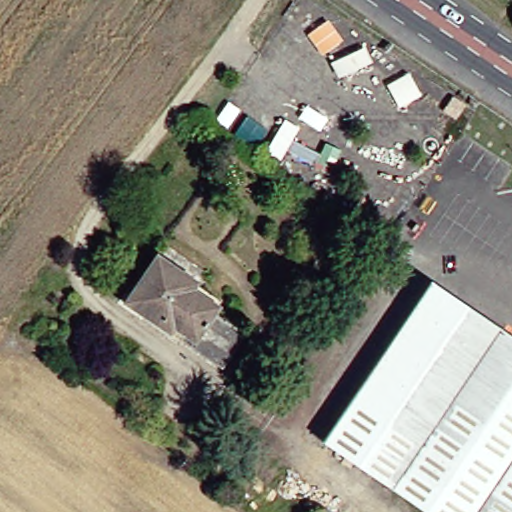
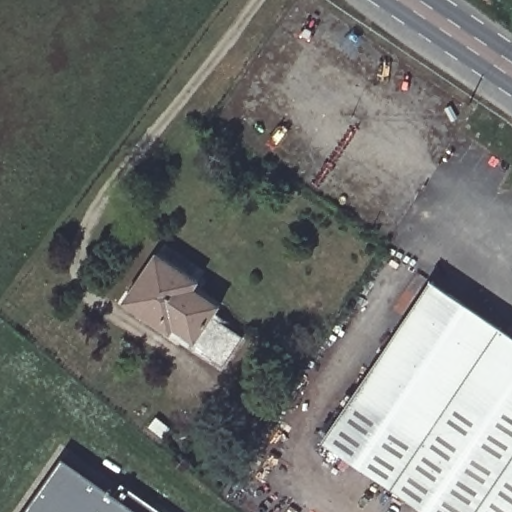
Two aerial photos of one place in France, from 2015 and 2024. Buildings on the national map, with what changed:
unchanged [(189,278),(184,284),(211,304),(204,314),(234,334),(212,365),(180,343),(185,335),(165,322),(160,329),(149,321),(114,298),(120,288),(147,250),(189,278)]
unchanged [(315,444),(423,282),(512,343),(512,512),(416,512),(315,444)]
unchanged [(161,422),(175,432),(168,442),(155,433),(161,422)]
new [(60,458),(113,494),(140,512),(24,512),(60,458)]
new [(120,483),(163,512),(140,512),(113,494),(120,483)]

